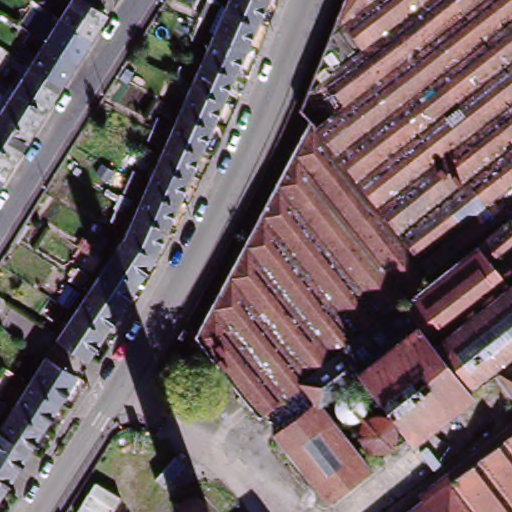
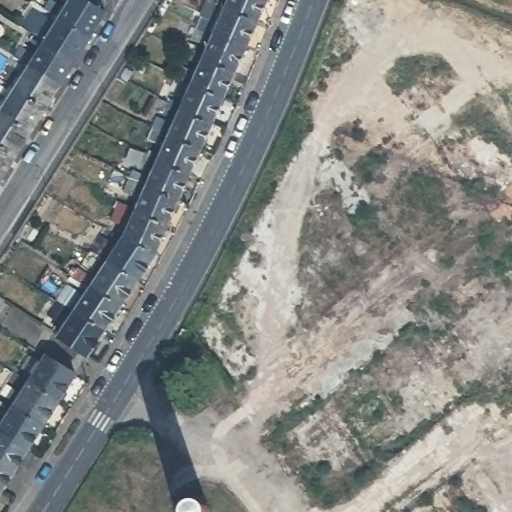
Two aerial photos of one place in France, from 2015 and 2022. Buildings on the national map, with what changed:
unchanged [(69,0),(72,0),(100,18),(86,40),(71,65),(40,46),(55,21),(69,0)]
unchanged [(59,0),(61,0),(60,1),(59,0)]
unchanged [(188,120),(200,95),(211,68),(222,45),(234,18),(242,0),(280,0),(276,9),(266,32),(254,59),(243,83),(232,109),(221,134),(210,159),(199,183),(187,210),(155,195),(166,169),(177,145),(188,120)]
demolished [(201,332),(302,124),(291,111),(335,0),(512,0),(512,394),(490,366),(461,389),(462,391),(404,437),(356,376),(324,401),(307,379),(265,412),(201,332)]
unchanged [(234,0),(234,1),(233,0),(234,0)]
unchanged [(33,21),(40,11),(45,3),(55,9),(50,18),(44,28),(33,21)]
unchanged [(218,10),(223,12),(227,5),(231,7),(228,14),(223,25),(214,20),(218,10)]
unchanged [(202,45),(206,37),(210,28),(220,32),(216,41),(212,50),(202,45)]
unchanged [(25,69),(40,46),(71,65),(56,89),(25,69)]
unchanged [(3,70),(10,60),(15,51),(25,56),(20,66),(14,76),(3,70)]
unchanged [(203,71),(198,69),(200,63),(202,59),(207,61),(205,66),(203,71)]
unchanged [(11,94),(25,69),(56,89),(41,113),(27,136),(12,160),(0,180),(0,111),(11,94)]
unchanged [(180,96),(184,88),(188,79),(197,84),(193,92),(190,101),(180,96)]
unchanged [(2,94),(0,97),(0,93),(2,94)]
unchanged [(169,121),(173,113),(176,104),(186,109),(182,117),(178,126),(169,121)]
unchanged [(157,147),(161,137),(165,129),(175,133),(171,141),(167,151),(157,147)]
unchanged [(153,170),(156,164),(158,159),(163,161),(161,166),(158,172),(153,170)]
unchanged [(135,198),(139,189),(142,181),(152,185),(149,193),(145,202),(135,198)]
unchanged [(176,235),(143,220),(155,195),(187,210),(176,235)]
unchanged [(129,225),(132,216),(137,218),(130,237),(119,232),(123,223),(129,225)]
unchanged [(163,264),(130,248),(143,220),(176,235),(170,249),(163,264)]
unchanged [(87,276),(98,260),(106,247),(117,254),(108,268),(99,284),(87,276)]
unchanged [(145,292),(115,272),(130,248),(163,264),(145,292)]
unchanged [(129,317),(99,297),(115,272),(145,292),(129,317)]
unchanged [(99,297),(129,317),(112,342),(82,323),(99,297)]
unchanged [(65,312),(75,298),(86,305),(76,319),(67,333),(56,326),(65,312)]
unchanged [(65,349),(82,323),(112,342),(95,369),(65,349)]
unchanged [(8,383),(15,372),(25,357),(31,346),(43,353),(36,364),(27,379),(20,391),(11,405),(0,398),(0,395),(8,383)]
unchanged [(33,383),(50,357),(78,376),(62,402),(46,426),(30,452),(1,434),(18,408),(33,383)]
unchanged [(10,407),(5,415),(0,422),(0,401),(10,407)]
demolished [(371,461),(328,494),(281,434),(324,401),(371,461)]
demolished [(512,421),(512,512),(396,512),(512,421)]
unchanged [(1,434),(30,452),(5,491),(0,499),(0,433),(1,434)]

